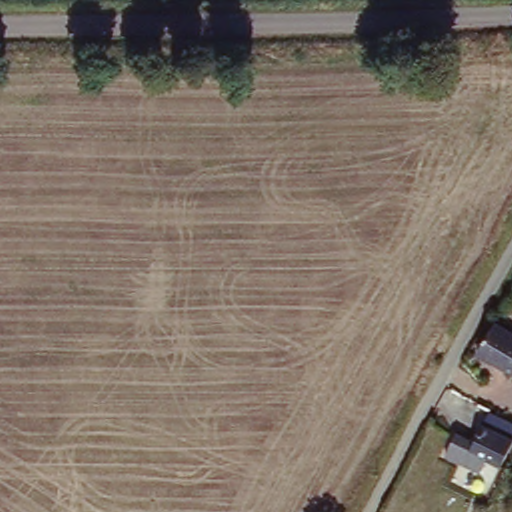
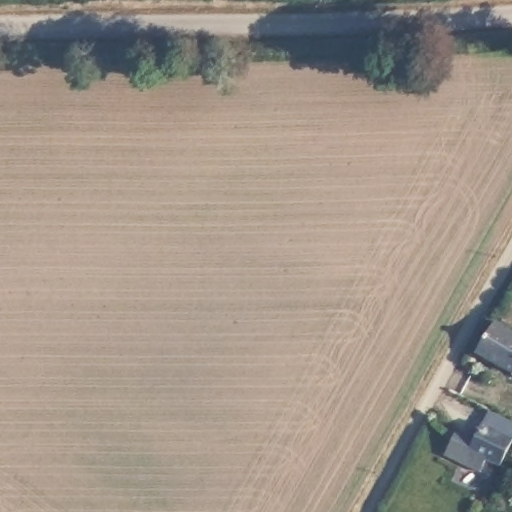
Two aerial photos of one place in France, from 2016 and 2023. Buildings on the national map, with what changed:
unchanged [(512,333),(512,373),(511,374),(472,349),(488,317),(512,333)]
unchanged [(442,462),(455,434),(475,444),(489,414),(493,417),(512,429),(512,433),(492,472),(481,464),(475,479),(442,462)]

